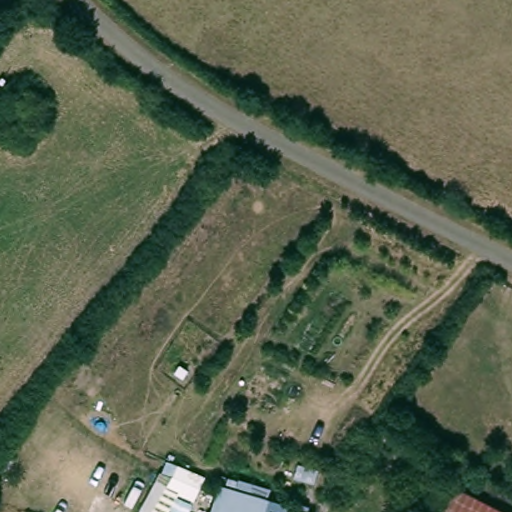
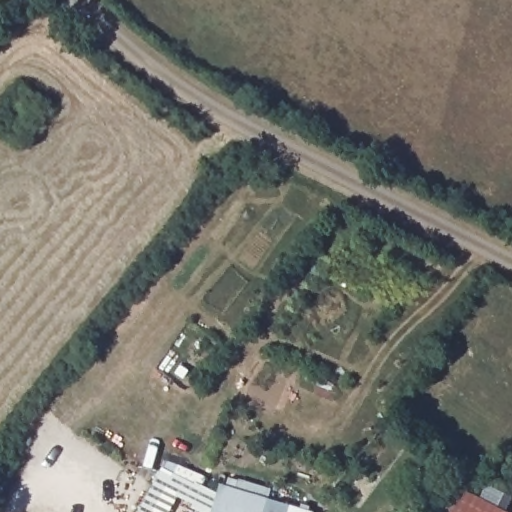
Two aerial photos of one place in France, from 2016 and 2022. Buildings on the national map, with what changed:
unchanged [(225,480),(269,495),(264,512),(215,512),(225,480)]
unchanged [(454,485),(507,512),(440,512),(454,485)]
unchanged [(314,512),(264,512),(269,495),(314,508),(314,512)]

